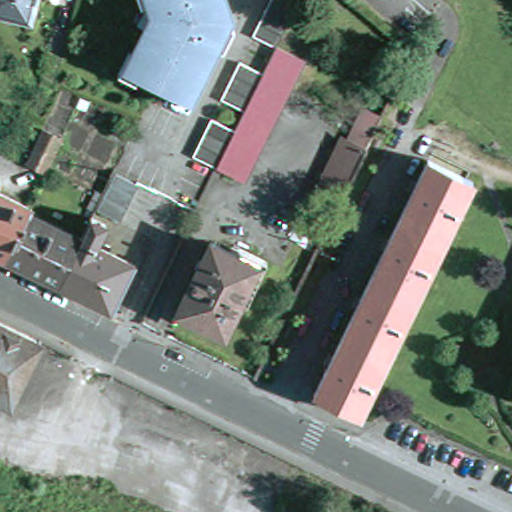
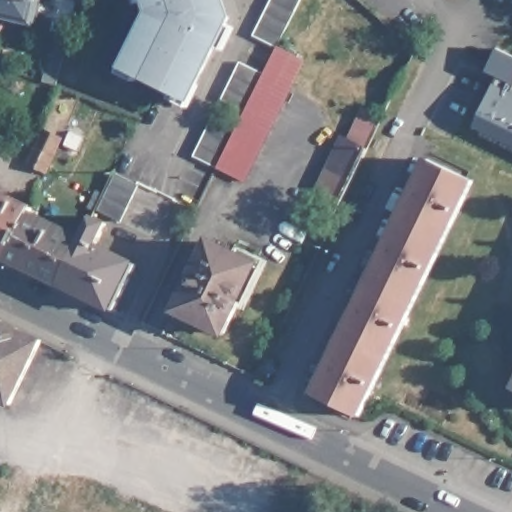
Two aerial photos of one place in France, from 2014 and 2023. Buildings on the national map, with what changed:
unchanged [(0,22),(0,0),(34,0),(33,6),(26,29),(12,25),(0,22)]
unchanged [(166,75),(202,0),(228,0),(234,18),(202,84),(196,81),(188,97),(138,72),(140,67),(166,75)]
unchanged [(140,67),(145,56),(141,54),(163,12),(159,0),(202,0),(166,75),(140,67)]
unchanged [(259,38),(278,0),(309,0),(284,50),(259,38)]
unchanged [(76,51),(60,46),(69,15),(84,19),(76,51)]
unchanged [(243,136),(253,116),(271,79),(274,72),(284,52),(311,65),(253,187),(225,174),(243,136)]
new [(496,85),(486,80),(497,57),(512,64),(512,145),(478,128),(496,85)]
unchanged [(228,103),(246,67),(271,79),(253,116),(228,103)]
unchanged [(316,197),(344,139),(354,144),(369,112),(381,118),(366,150),(339,208),(316,197)]
unchanged [(225,174),(201,162),(218,124),(243,136),(225,174)]
unchanged [(50,173),(33,164),(48,131),(65,138),(50,173)]
unchanged [(316,405),(319,398),(319,397),(432,163),(473,184),(363,418),(357,416),(353,422),(316,405)]
unchanged [(125,221),(103,210),(119,174),(120,172),(142,182),(141,185),(125,221)]
unchanged [(0,252),(0,193),(33,209),(31,214),(11,257),(0,252)]
unchanged [(85,240),(64,283),(11,257),(31,214),(85,240)]
unchanged [(96,216),(110,223),(99,247),(139,266),(118,309),(64,283),(85,240),(96,216)]
unchanged [(259,265),(226,332),(181,310),(213,243),(259,265)]
unchanged [(20,406),(0,397),(0,319),(50,344),(20,406)]

